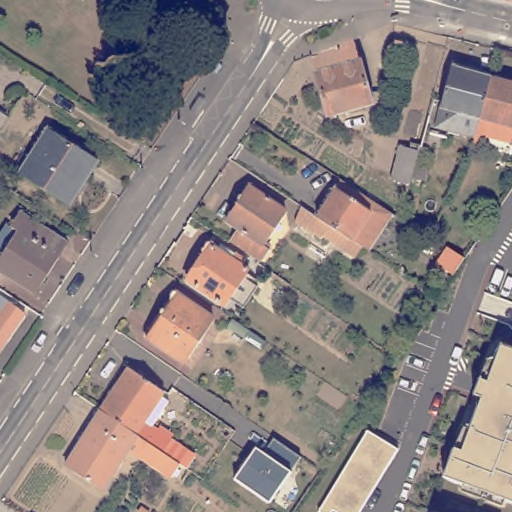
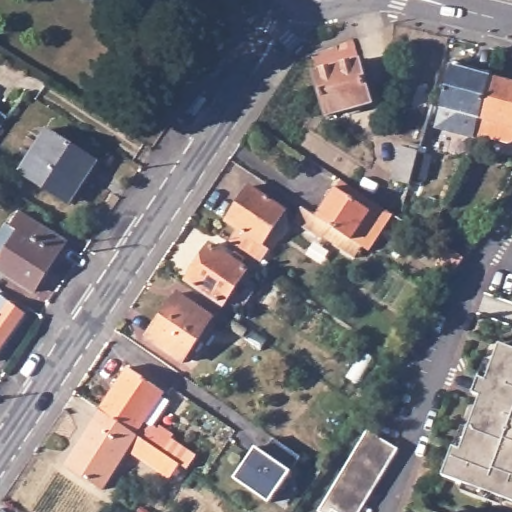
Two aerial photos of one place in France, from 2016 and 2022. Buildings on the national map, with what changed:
unchanged [(320,73),(363,60),(376,104),(332,116),(320,73)]
unchanged [(466,155),(467,150),(472,132),(434,121),(439,102),(438,102),(450,61),(489,72),(512,78),(512,139),(509,148),(500,153),(478,146),(477,152),(475,158),(466,155)]
unchanged [(0,103),(11,110),(0,128),(0,103)]
unchanged [(23,171),(51,129),(100,160),(73,202),(23,171)]
unchanged [(389,179),(398,147),(417,152),(427,155),(420,179),(410,177),(408,184),(389,179)]
unchanged [(330,228),(324,229),(299,212),(305,196),(320,206),(344,169),(379,191),(396,202),(391,210),(371,240),(366,236),(359,247),(349,241),(330,228)]
unchanged [(246,219),(235,211),(258,177),(294,200),(271,236),(284,245),(276,257),(239,231),(246,219)]
unchanged [(3,262),(13,245),(1,237),(14,218),(19,221),(29,206),(74,235),(41,287),(3,262)]
unchanged [(219,240),(257,265),(232,300),(195,277),(219,240)]
unchanged [(462,258),(451,275),(434,264),(445,247),(462,258)]
unchanged [(186,288),(222,312),(191,358),(156,334),(186,288)]
unchanged [(0,358),(0,300),(28,319),(0,358)]
unchanged [(242,338),(226,327),(232,318),(248,329),(242,338)]
unchanged [(502,496),(499,505),(459,489),(461,481),(442,474),(453,445),(462,448),(482,396),(472,392),(478,377),(486,380),(501,344),(512,348),(512,500),(502,496)]
unchanged [(131,369),(168,393),(166,397),(172,402),(160,420),(153,416),(150,421),(162,429),(164,427),(177,436),(165,452),(104,410),(131,369)]
unchanged [(193,401),(176,389),(185,375),(203,387),(193,401)]
unchanged [(183,465),(174,478),(133,451),(106,490),(68,464),(104,410),(165,452),(183,465)]
unchanged [(336,512),(332,509),(331,512),(319,512),(317,510),(367,429),(397,448),(357,512),(336,512)]
unchanged [(299,457),(290,473),(269,502),(235,479),(258,447),(266,453),(274,438),(299,457)]

